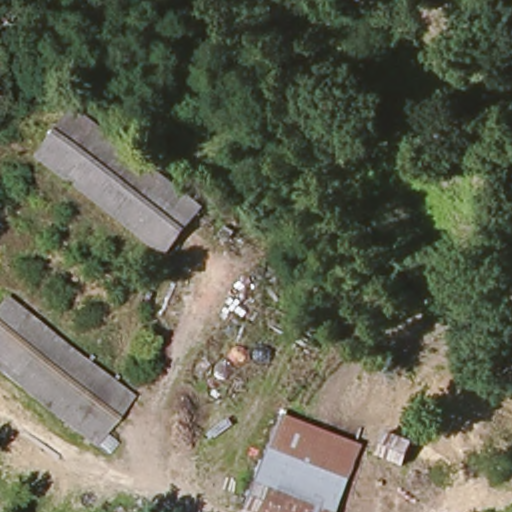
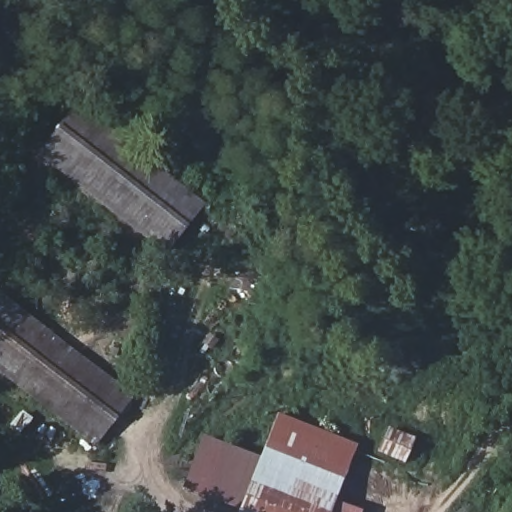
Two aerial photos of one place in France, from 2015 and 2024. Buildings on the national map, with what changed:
unchanged [(206,203),(168,253),(40,154),(80,104),(206,203)]
unchanged [(12,303),(137,402),(102,451),(0,371),(0,318),(12,303)]
unchanged [(359,450),(335,512),(247,512),(281,420),(359,450)]
unchanged [(413,440),(403,463),(391,459),(391,456),(380,451),(390,429),(413,440)]
new [(237,510),(183,488),(202,435),(258,457),(237,510)]

